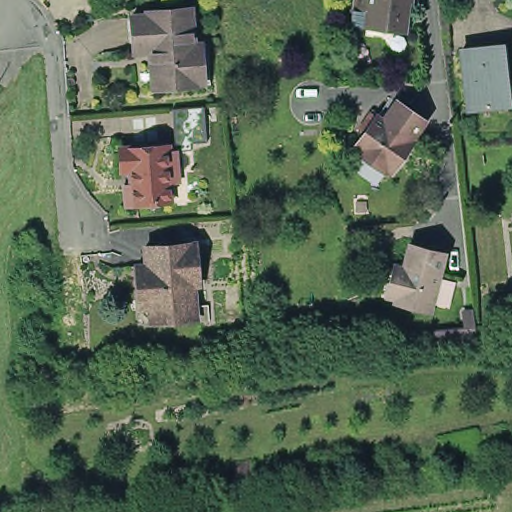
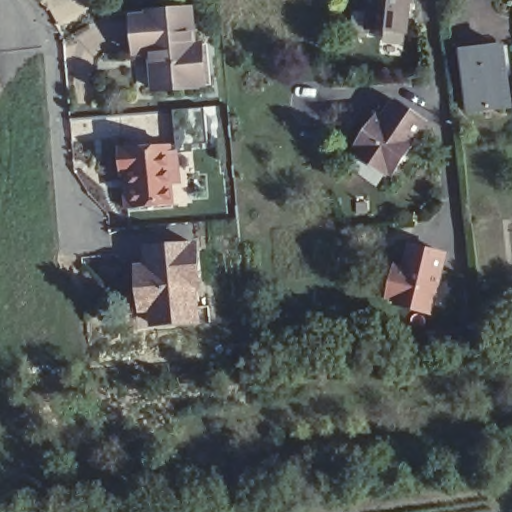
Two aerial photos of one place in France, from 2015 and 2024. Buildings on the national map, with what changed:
unchanged [(367,10),(353,7),(354,0),(406,0),(404,30),(365,26),(367,10)]
unchanged [(195,85),(195,87),(150,89),(147,53),(132,54),(130,17),(146,15),(146,12),(189,9),(192,46),(198,45),(200,66),(202,84),(195,85)]
unchanged [(473,115),(466,55),(505,50),(512,111),(473,115)]
unchanged [(356,153),(360,149),(353,143),(377,114),(383,119),(398,103),(424,125),(410,142),(412,143),(386,172),(382,168),(378,172),(356,153)]
unchanged [(127,208),(125,185),(132,184),(130,171),(126,171),(123,148),(168,144),(169,149),(177,147),(180,180),(171,182),(173,204),(127,208)]
unchanged [(158,327),(156,310),(147,311),(142,268),(151,267),(148,248),(197,243),(202,285),(199,285),(202,322),(158,327)]
unchanged [(389,267),(393,268),(400,270),(405,246),(443,256),(430,313),(392,304),(392,301),(385,299),(382,298),(389,267)]
unchanged [(420,329),(460,325),(458,308),(468,307),(470,318),(472,335),(422,340),(420,329)]

